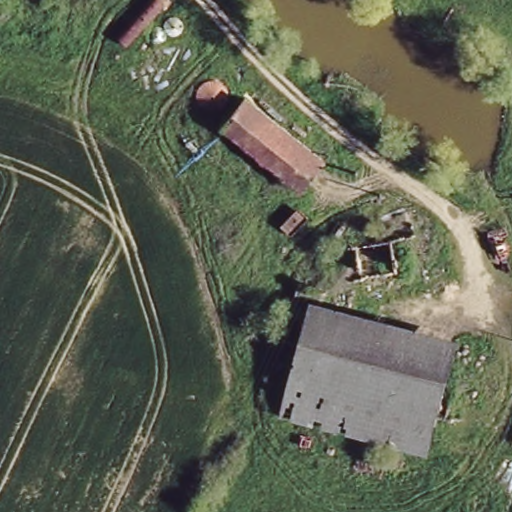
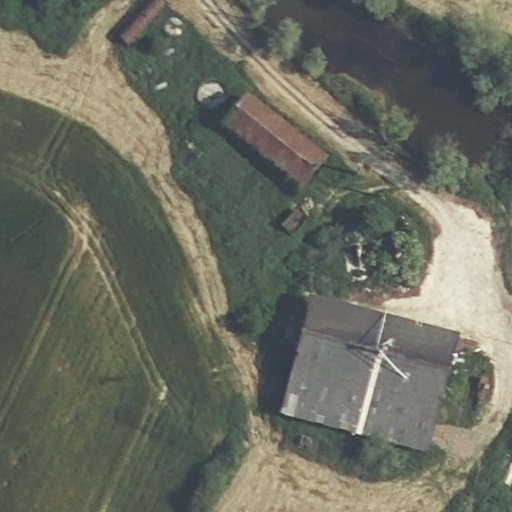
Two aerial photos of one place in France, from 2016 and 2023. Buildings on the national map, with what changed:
unchanged [(242,104),(321,165),(299,194),(219,133),(242,104)]
unchanged [(299,346),(306,319),(311,303),(322,306),(457,342),(428,455),(280,417),(299,346)]

